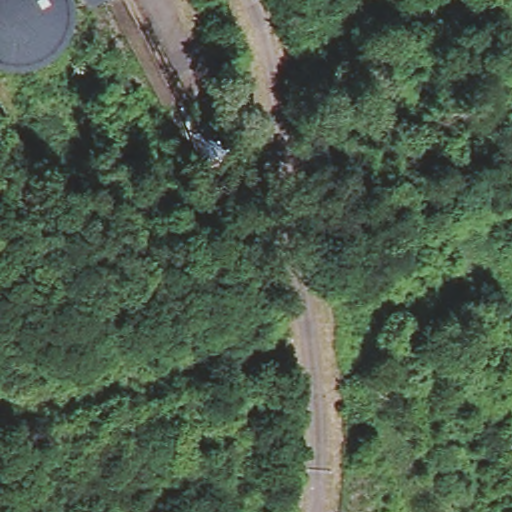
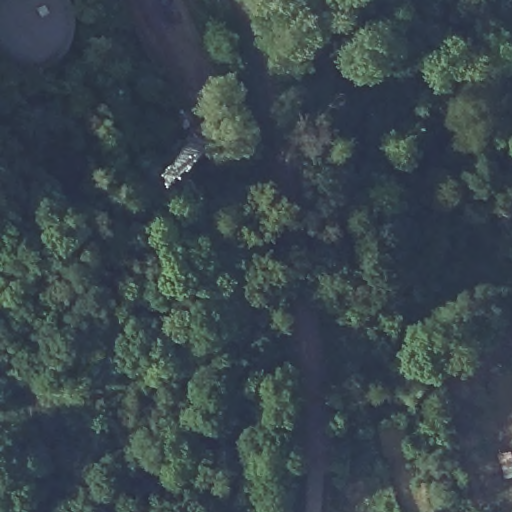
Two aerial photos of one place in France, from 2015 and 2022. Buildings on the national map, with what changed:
unchanged [(102,1),(84,11),(77,0),(118,0),(172,101),(157,109),(102,1)]
unchanged [(157,146),(153,135),(177,129),(180,141),(157,146)]

